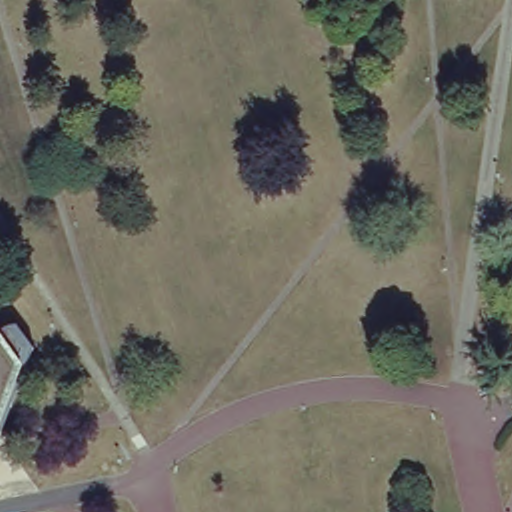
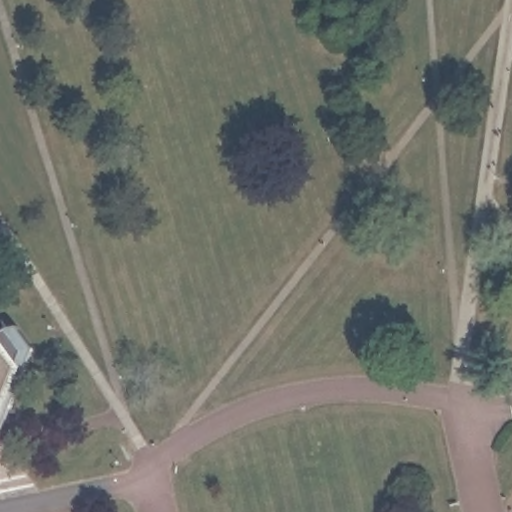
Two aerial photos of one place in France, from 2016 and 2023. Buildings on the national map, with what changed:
unchanged [(9,325),(14,315),(15,315),(32,339),(0,422),(0,399),(21,340),(9,325)]
unchanged [(21,340),(0,399),(0,331),(9,325),(21,340)]

